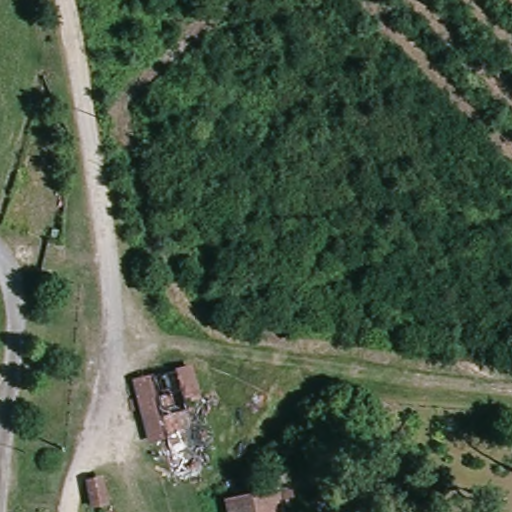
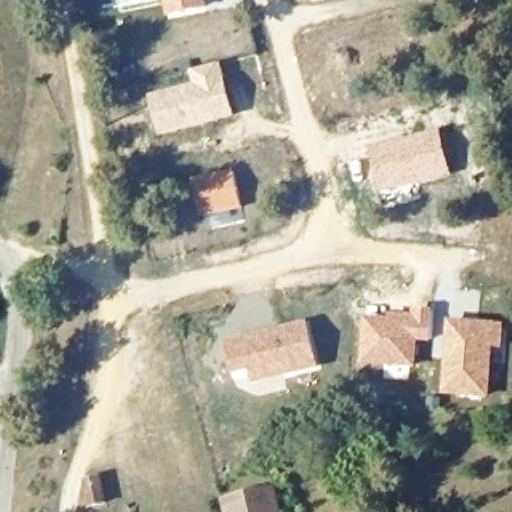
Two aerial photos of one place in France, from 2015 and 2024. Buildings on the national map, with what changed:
new [(210,8),(169,16),(165,0),(208,0),(210,8)]
new [(224,69),(236,116),(161,136),(150,95),(195,83),(197,71),(209,73),(224,69)]
new [(380,192),(369,146),(428,131),(440,177),(380,192)]
new [(209,174),(210,177),(212,176),(212,173),(234,169),(242,208),(203,217),(194,177),(209,174)]
new [(361,364),(365,315),(390,317),(390,312),(412,313),(413,307),(427,308),(426,319),(433,319),(431,342),(418,341),(416,367),(361,364)]
new [(442,394),(447,318),(501,321),(490,397),(442,394)]
new [(309,320),(320,368),(255,384),(252,371),(235,375),(226,340),(309,320)]
demolished [(206,468),(182,473),(160,374),(185,369),(206,468)]
unchanged [(104,498),(89,501),(85,477),(99,473),(104,498)]
demolished [(102,512),(99,494),(114,491),(117,512),(102,512)]
unchanged [(278,495),(282,512),(230,512),(229,507),(278,495)]

